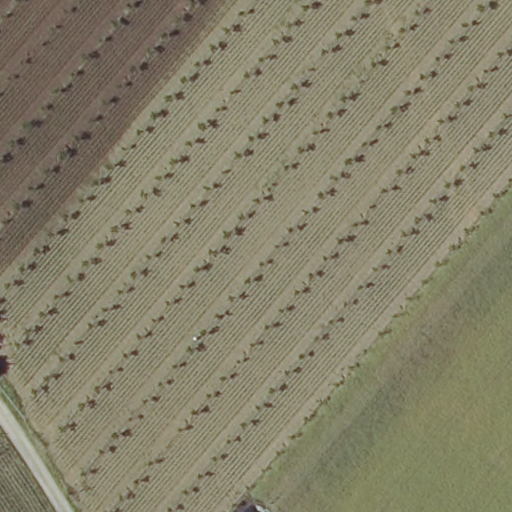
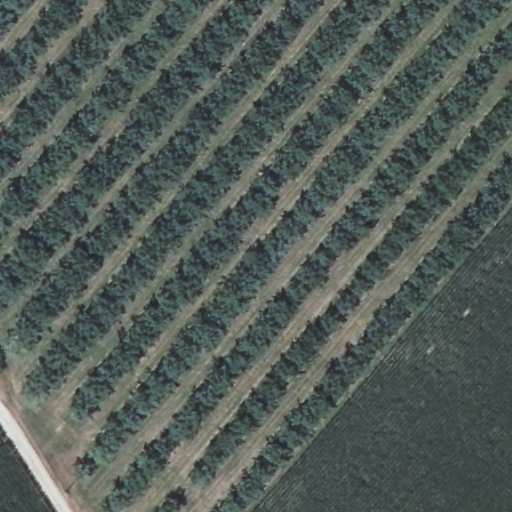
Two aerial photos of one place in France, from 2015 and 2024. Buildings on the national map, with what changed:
[]

